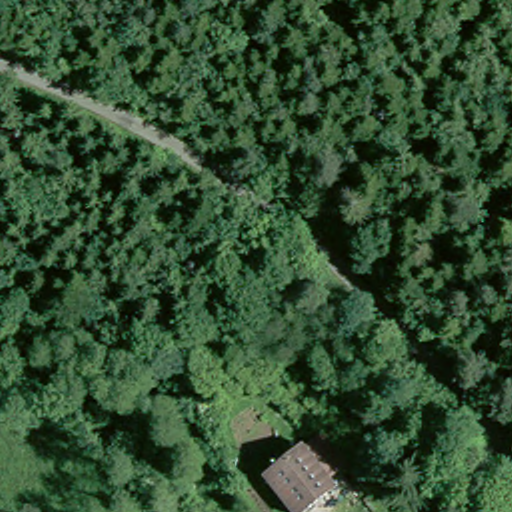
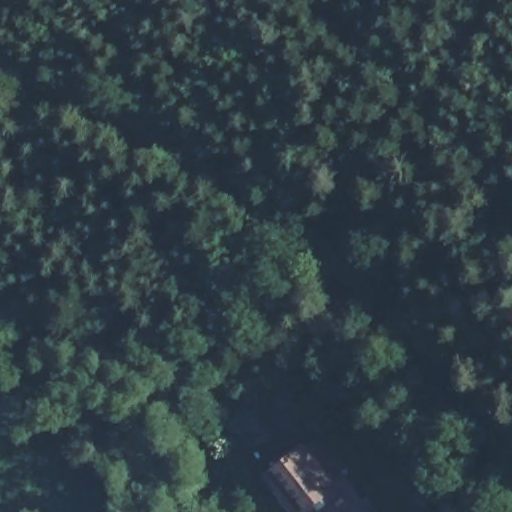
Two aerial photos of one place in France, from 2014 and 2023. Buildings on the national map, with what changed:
unchanged [(286,460),(306,438),(340,467),(322,489),(286,460)]
unchanged [(330,496),(316,512),(277,512),(257,493),(286,460),(322,489),(330,496)]

